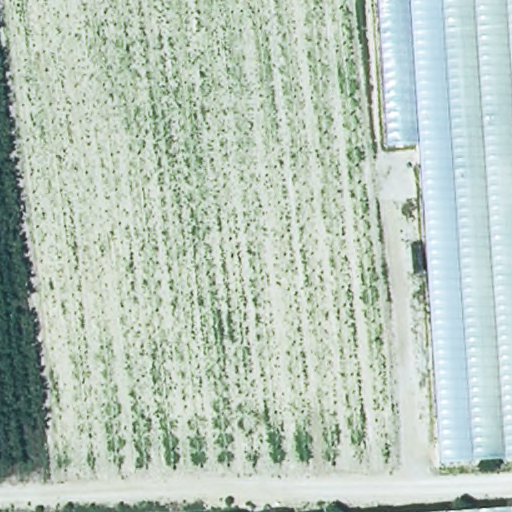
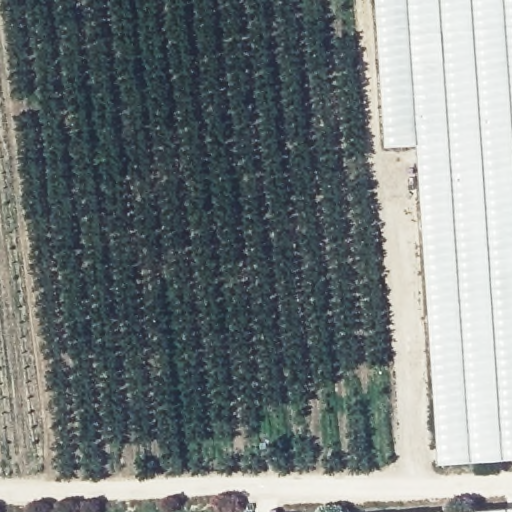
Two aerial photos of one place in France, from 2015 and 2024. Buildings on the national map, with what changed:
unchanged [(361,142),(359,0),(512,0),(512,460),(439,465),(414,143),(361,142)]
unchanged [(512,512),(423,512),(512,507),(512,512)]

